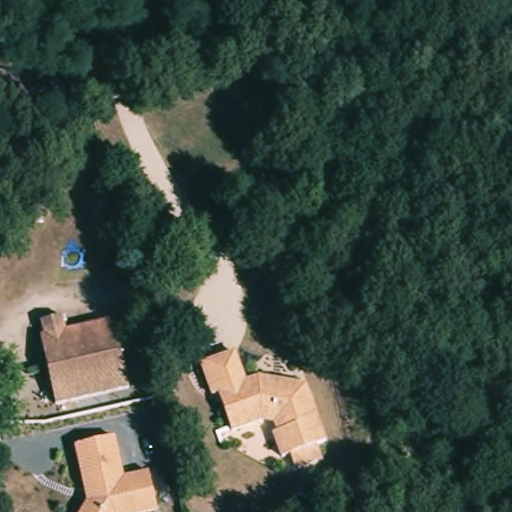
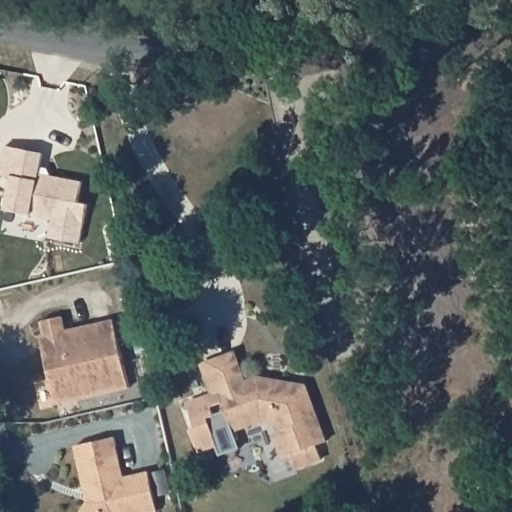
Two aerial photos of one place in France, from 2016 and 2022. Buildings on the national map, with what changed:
new [(5,148),(43,155),(40,175),(82,183),(79,204),(88,205),(81,244),(50,239),(54,220),(6,212),(12,178),(0,176),(5,148)]
unchanged [(127,388),(56,404),(39,336),(112,320),(127,388)]
unchanged [(243,383),(256,378),(265,379),(278,381),(303,385),(324,441),(315,445),(320,459),(293,468),(288,454),(280,457),(271,433),(276,432),(272,422),(259,420),(232,430),(216,393),(211,395),(200,365),(232,353),(243,383)]
unchanged [(112,437),(122,478),(147,472),(156,511),(152,512),(80,512),(90,497),(88,487),(83,488),(74,446),(112,437)]

